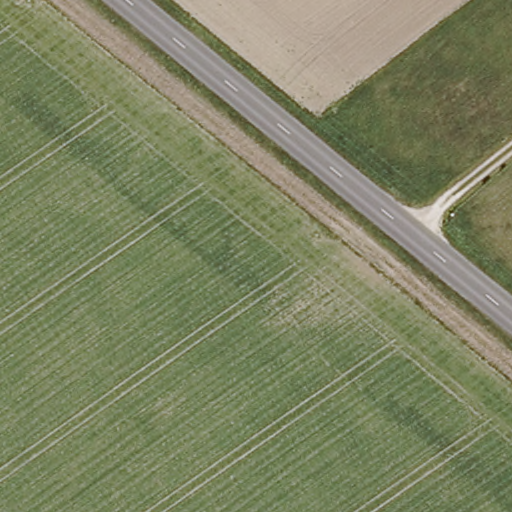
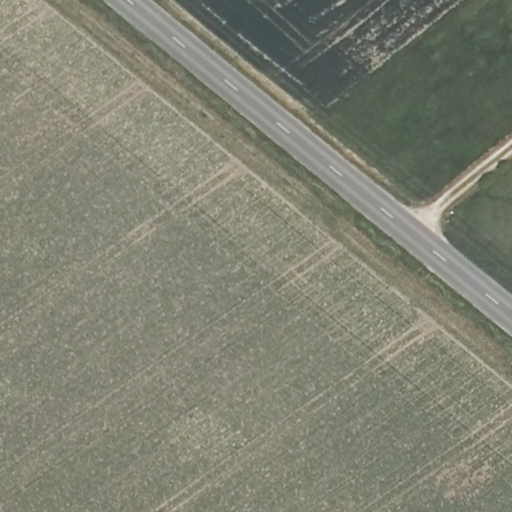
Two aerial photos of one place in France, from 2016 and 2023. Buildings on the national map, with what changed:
[]

